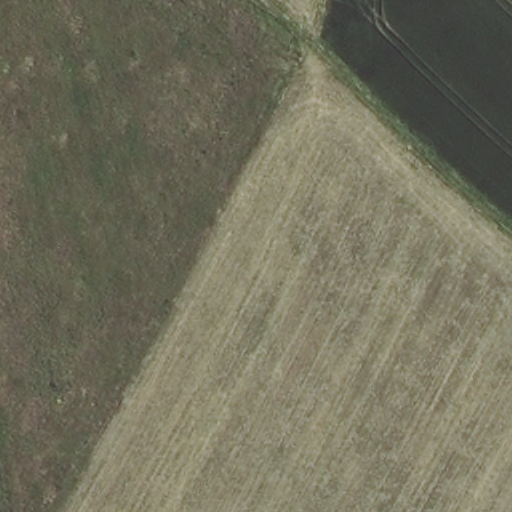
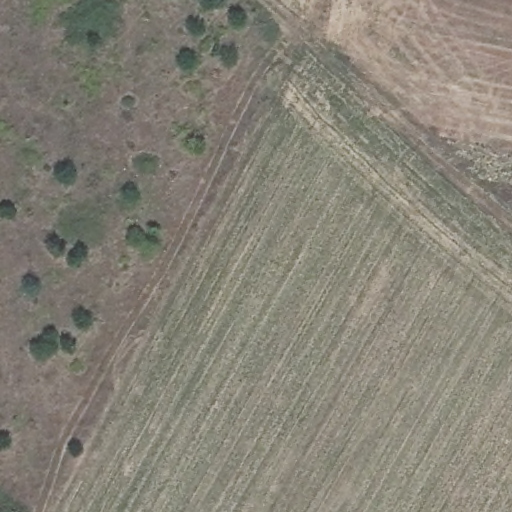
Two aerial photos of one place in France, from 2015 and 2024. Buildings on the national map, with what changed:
[]

